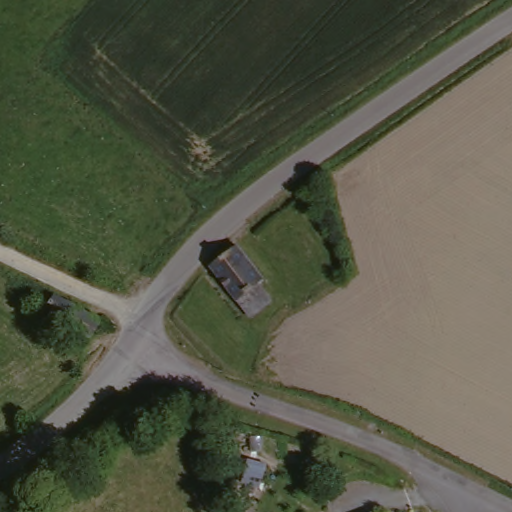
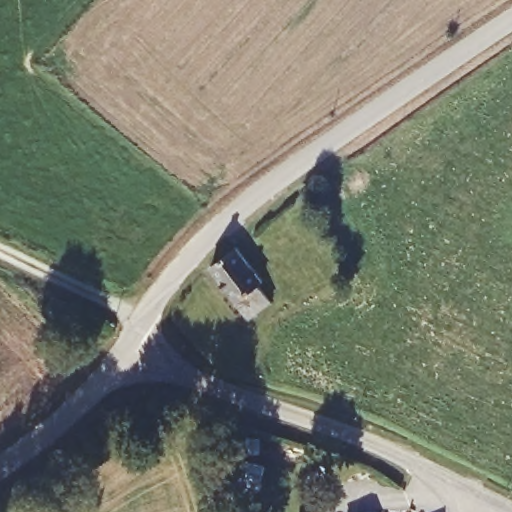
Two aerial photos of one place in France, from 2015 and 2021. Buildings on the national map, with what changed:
unchanged [(238,247),(263,280),(258,285),(272,302),(250,318),(211,266),(238,247)]
unchanged [(58,292),(106,316),(91,344),(46,319),(58,292)]

